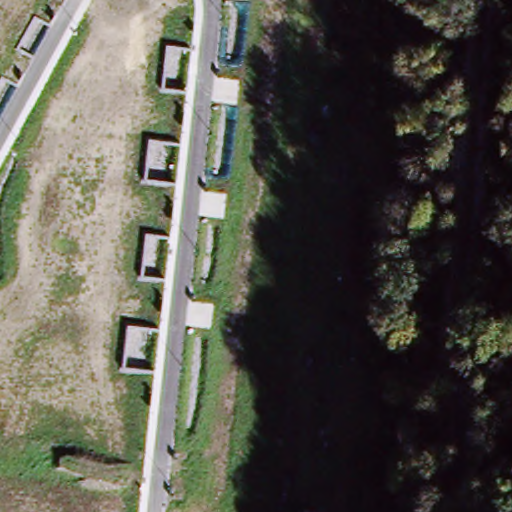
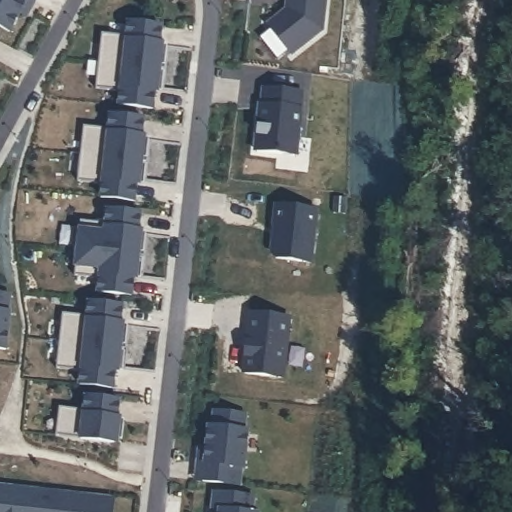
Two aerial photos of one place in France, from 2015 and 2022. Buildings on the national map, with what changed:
new [(34,2),(26,17),(20,13),(9,32),(0,27),(0,0),(30,0),(34,2)]
new [(287,0),(325,0),(322,29),(294,54),(269,25),(286,9),(287,0)]
new [(105,32),(130,35),(132,22),(166,26),(164,42),(157,42),(157,49),(163,49),(161,67),(102,61),(105,32)]
new [(161,67),(159,86),(152,85),(152,92),(158,93),(157,109),(122,105),(124,92),(100,89),(102,61),(161,67)]
demolished [(43,68),(178,107),(172,131),(162,159),(94,140),(5,115),(12,86),(36,92),(43,68)]
new [(260,106),(262,106),(262,89),(302,92),(299,154),(257,151),(260,106)]
new [(87,125),(112,127),(114,115),(147,119),(145,135),(140,134),(139,141),(145,142),(143,160),(84,153),(87,125)]
new [(143,160),(141,179),(135,178),(134,185),(140,186),(139,201),(105,197),(106,185),(81,182),(85,154),(143,160)]
new [(275,224),(274,224),(276,205),(317,210),(310,262),(275,257),(271,251),(275,224)]
new [(84,220),(109,222),(110,210),(144,214),(142,230),(135,229),(135,236),(141,237),(139,255),(80,249),(84,220)]
new [(80,249),(139,255),(137,273),(130,272),(130,280),(136,281),(135,296),(100,292),(102,280),(77,277),(80,249)]
new [(10,294),(8,310),(10,311),(7,348),(0,347),(0,293),(10,294)]
new [(67,313),(92,316),(94,303),(127,307),(125,323),(120,322),(119,330),(125,330),(123,348),(65,342),(67,313)]
new [(65,342),(123,348),(120,367),(115,366),(114,373),(120,374),(119,390),(85,386),(86,373),(61,371),(65,342)]
new [(63,409),(88,412),(90,399),(124,403),(121,420),(115,418),(114,426),(120,427),(118,445),(60,437),(63,409)]
new [(199,446),(206,447),(208,426),(212,426),(214,410),(250,415),(249,431),(252,431),(247,466),(245,466),(243,485),(202,480),(195,480),(197,462),(199,446)]
new [(48,491),(46,512),(0,512),(0,485),(48,491)]
new [(112,512),(46,512),(48,491),(113,498),(112,512)]
new [(252,501),(252,512),(257,512),(211,512),(212,497),(252,501)]

